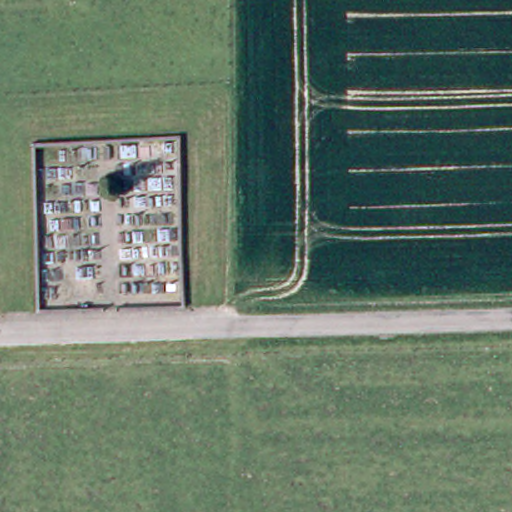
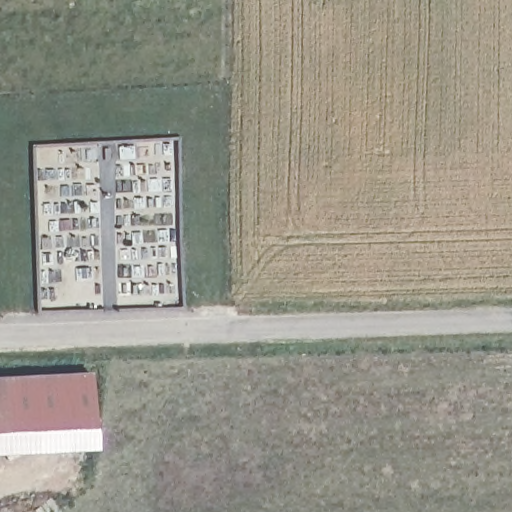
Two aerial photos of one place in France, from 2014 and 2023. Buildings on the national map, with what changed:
new [(94,374),(96,449),(0,454),(0,378),(94,374)]

